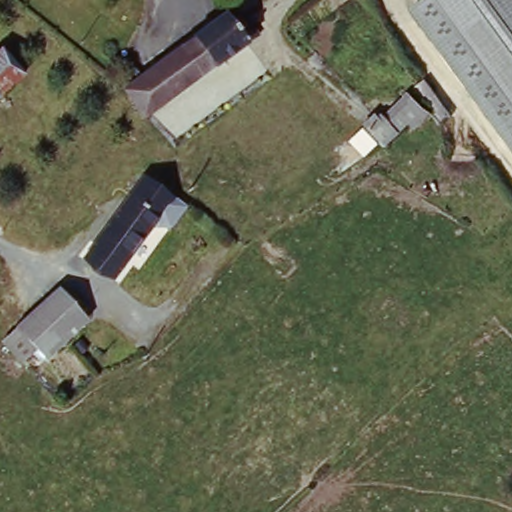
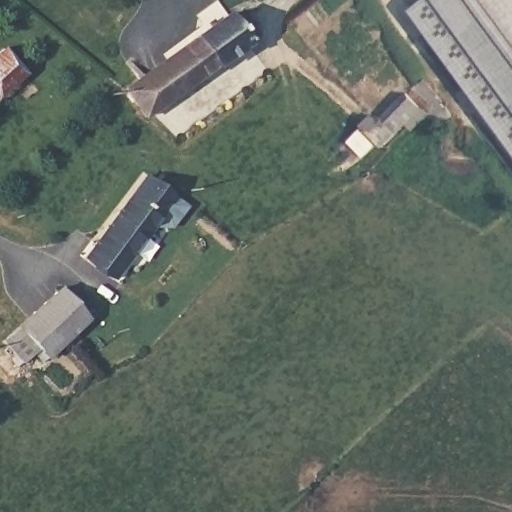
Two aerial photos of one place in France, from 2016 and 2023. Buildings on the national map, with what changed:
unchanged [(429,0),(487,0),(512,33),(512,161),(406,16),(429,0)]
unchanged [(512,33),(487,0),(512,0),(512,33)]
unchanged [(231,24),(241,16),(259,40),(146,121),(123,92),(225,18),(231,24)]
unchanged [(23,81),(0,101),(0,54),(23,81)]
unchanged [(362,133),(383,111),(389,116),(413,92),(428,106),(384,153),(362,133)]
unchanged [(160,226),(113,293),(79,271),(128,203),(160,226)]
unchanged [(14,330),(53,295),(60,289),(91,324),(47,366),(36,355),(17,373),(0,352),(0,341),(14,330)]

